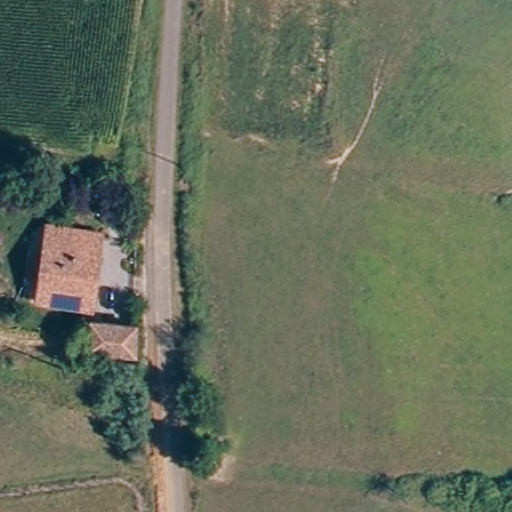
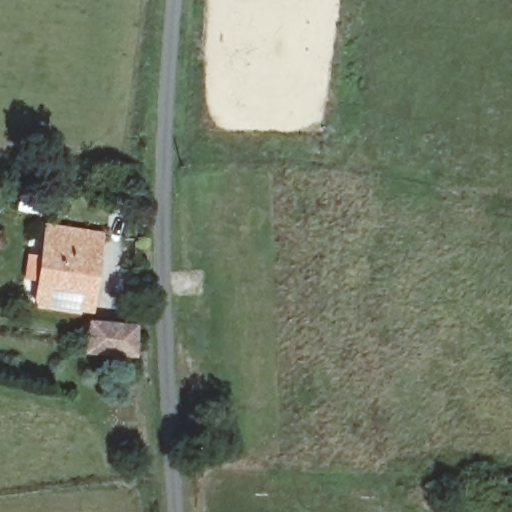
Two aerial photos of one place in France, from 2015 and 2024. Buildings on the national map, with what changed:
unchanged [(45,227),(95,232),(99,234),(88,310),(34,304),(45,227)]
unchanged [(88,351),(92,322),(136,326),(135,355),(88,351)]

